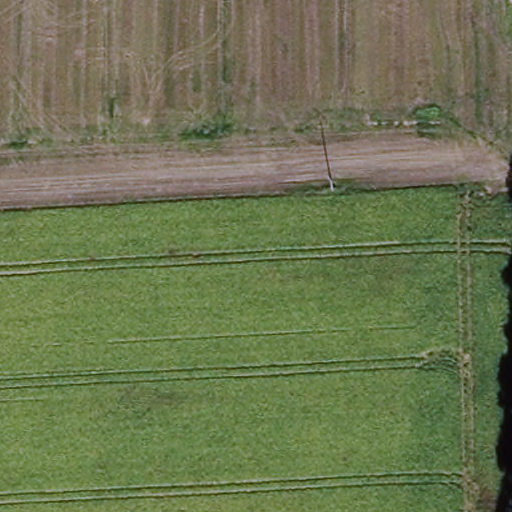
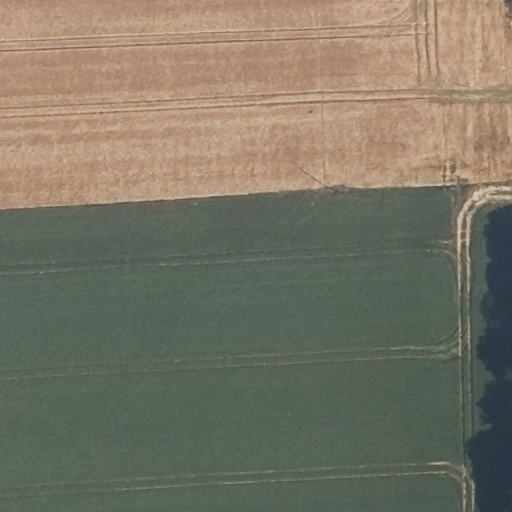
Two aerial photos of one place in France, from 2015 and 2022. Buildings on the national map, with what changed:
[]

